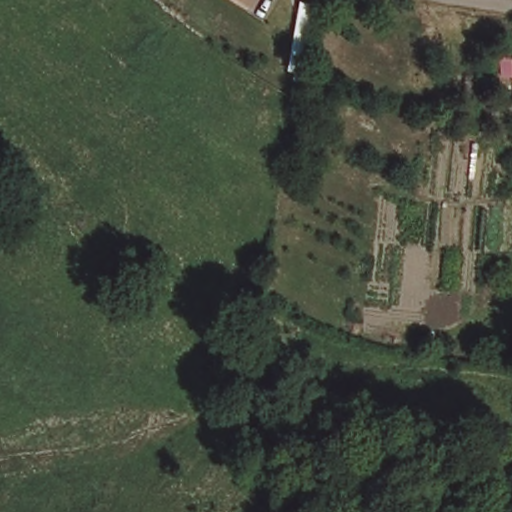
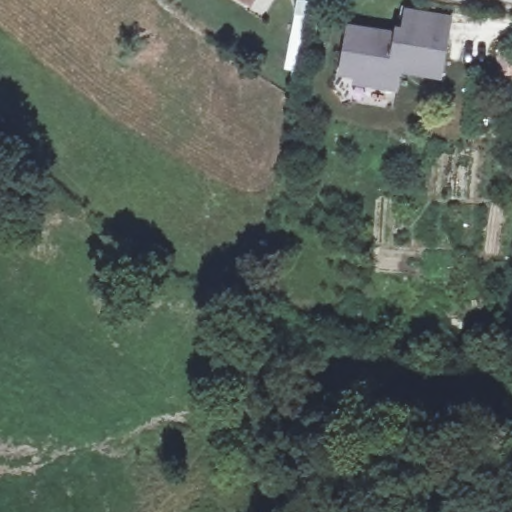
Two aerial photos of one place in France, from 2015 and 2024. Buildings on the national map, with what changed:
unchanged [(245,0),(261,0),(257,6),(245,0)]
new [(305,0),(314,1),(300,71),(284,69),(297,0),(305,0)]
new [(352,79),(337,76),(344,24),(394,30),(399,31),(403,9),(452,15),(449,41),(440,77),(401,71),(397,93),(351,86),(352,79)]

